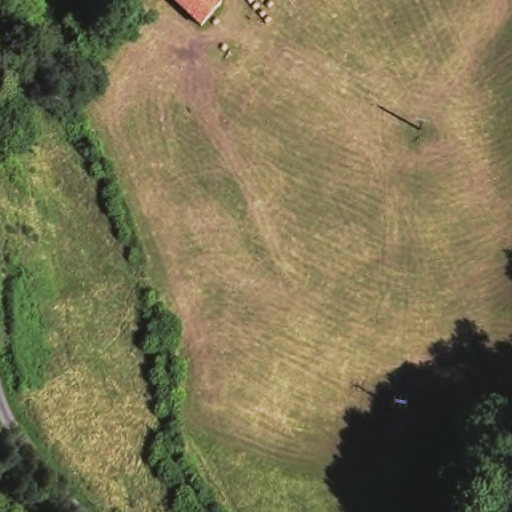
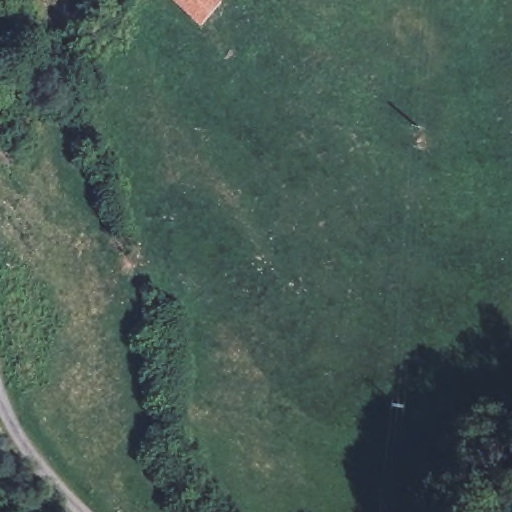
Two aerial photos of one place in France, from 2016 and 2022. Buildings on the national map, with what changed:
unchanged [(225,1),(202,24),(177,0),(225,0),(225,1)]

